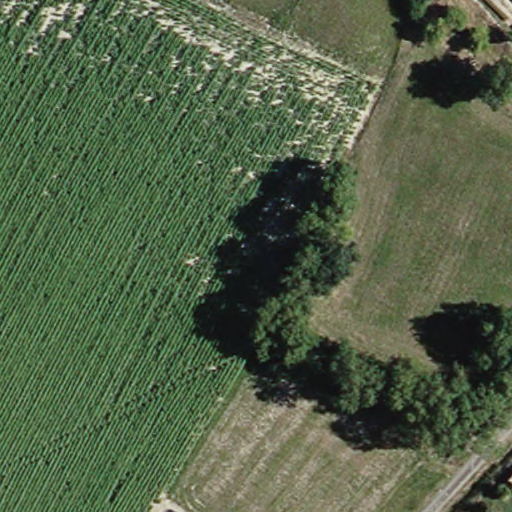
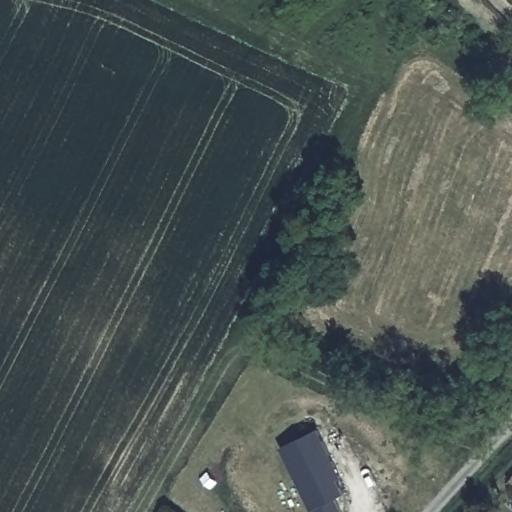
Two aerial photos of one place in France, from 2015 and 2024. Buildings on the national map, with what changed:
new [(336,479),(343,493),(335,497),(342,512),(313,512),(280,447),(316,430),(340,477),(336,479)]

